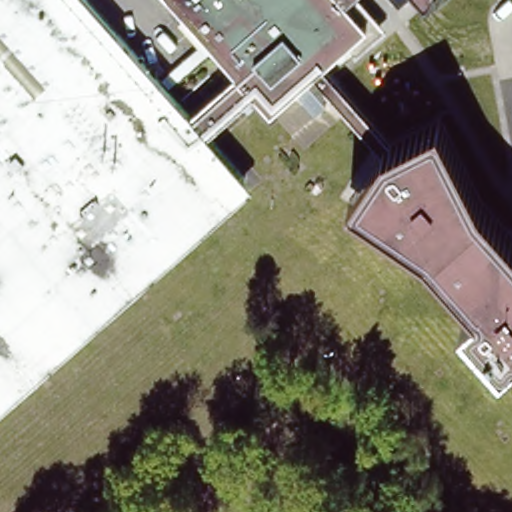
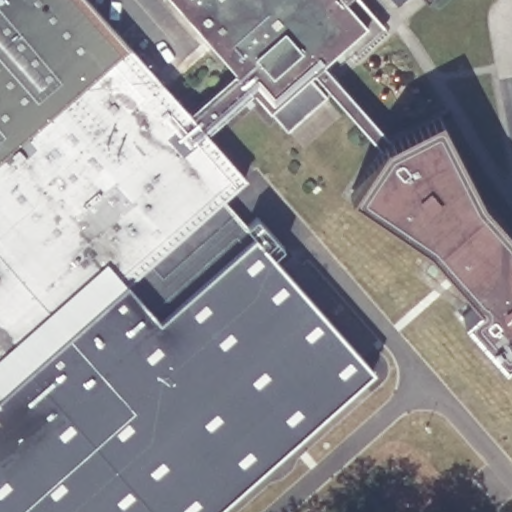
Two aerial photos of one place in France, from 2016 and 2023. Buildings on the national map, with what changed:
unchanged [(210,134),(253,184),(0,403),(0,0),(93,0),(190,110),(231,73),(253,92),(210,134)]
unchanged [(253,92),(231,73),(170,0),(362,0),(385,27),(328,74),(277,116),(253,92)]
unchanged [(463,318),(477,308),(427,246),(359,197),(386,147),(387,144),(391,140),(395,139),(445,120),(480,195),(512,232),(512,359),(502,366),(463,318)]
new [(228,206),(254,237),(374,369),(213,512),(0,512),(0,403),(228,206)]

